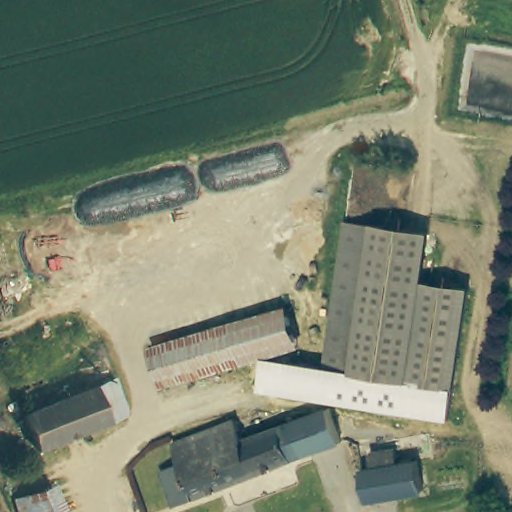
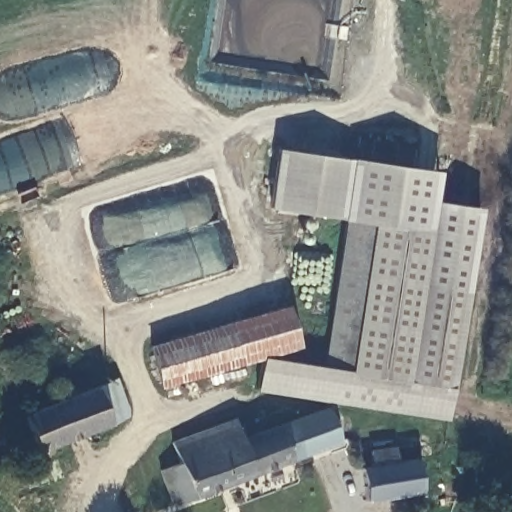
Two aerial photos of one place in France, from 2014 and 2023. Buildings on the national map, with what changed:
new [(277,148),(440,171),(435,201),(482,208),(470,287),(467,287),(437,284),(421,282),(427,232),(400,229),(344,222),(270,208),(277,148)]
unchanged [(342,241),(344,222),(400,229),(427,232),(421,282),(437,284),(467,287),(455,387),(455,388),(326,372),(342,241)]
unchanged [(302,345),(171,383),(161,350),(291,310),(302,345)]
new [(258,391),(262,356),(326,367),(326,372),(452,387),(448,420),(258,391)]
unchanged [(112,387),(124,424),(103,432),(34,455),(22,416),(92,393),(112,387)]
unchanged [(174,443),(238,423),(243,442),(330,414),(340,445),(331,448),(336,463),(307,472),(302,459),(173,501),(163,468),(180,463),(174,443)]
unchanged [(364,474),(381,472),(380,459),(401,457),(402,468),(423,466),(426,497),(367,503),(364,474)]
unchanged [(63,512),(19,512),(15,505),(52,489),(63,512)]

